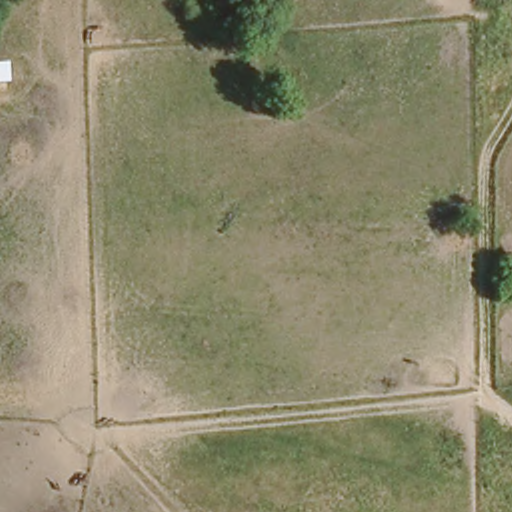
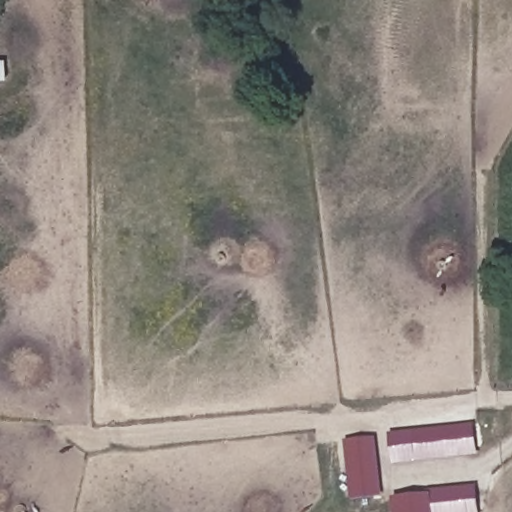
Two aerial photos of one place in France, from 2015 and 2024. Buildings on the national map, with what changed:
new [(394,466),(390,434),(476,425),(479,456),(394,466)]
new [(353,500),(346,441),(378,439),(384,497),(353,500)]
new [(392,500),(433,496),(433,493),(480,486),(481,512),(394,512),(392,500)]

